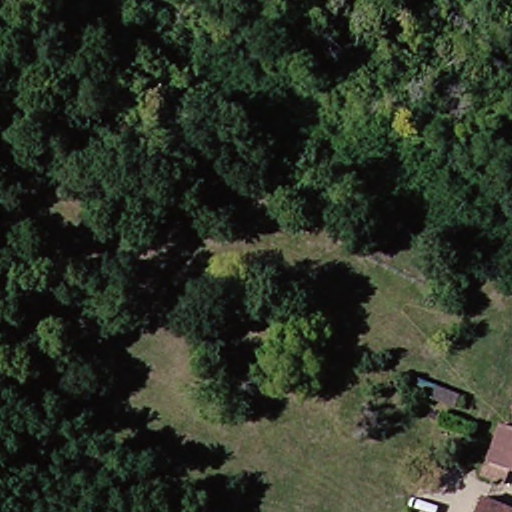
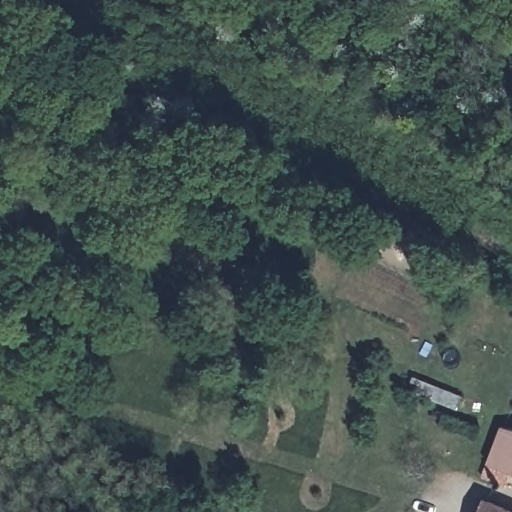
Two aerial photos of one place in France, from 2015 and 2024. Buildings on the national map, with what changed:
unchanged [(504,426),(512,428),(512,478),(489,474),(504,426)]
unchanged [(487,500),(512,510),(512,512),(483,512),(487,500)]

